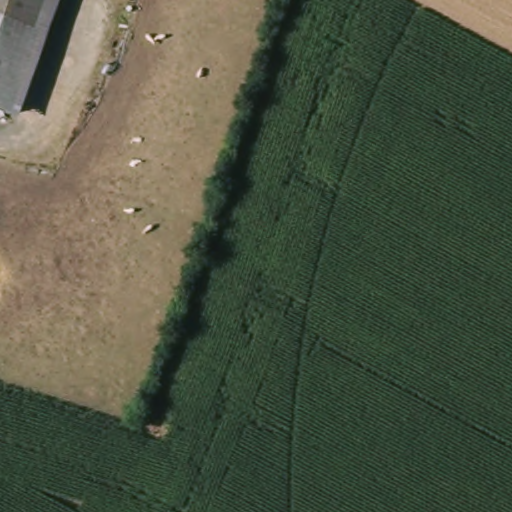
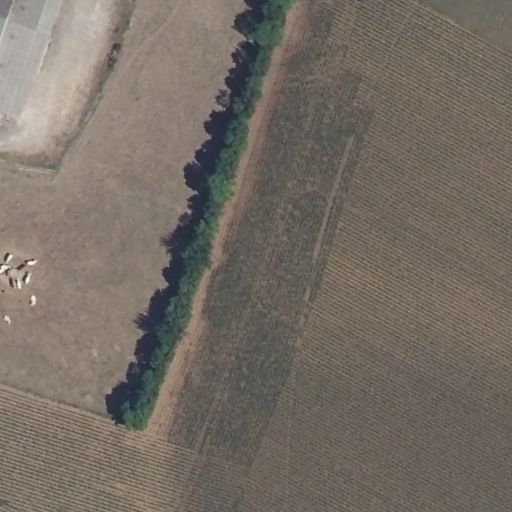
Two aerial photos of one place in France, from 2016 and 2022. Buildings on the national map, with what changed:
unchanged [(32,31),(0,20),(0,0),(42,0),(32,31)]
unchanged [(32,31),(42,0),(65,0),(22,123),(0,115),(0,20),(32,31)]

